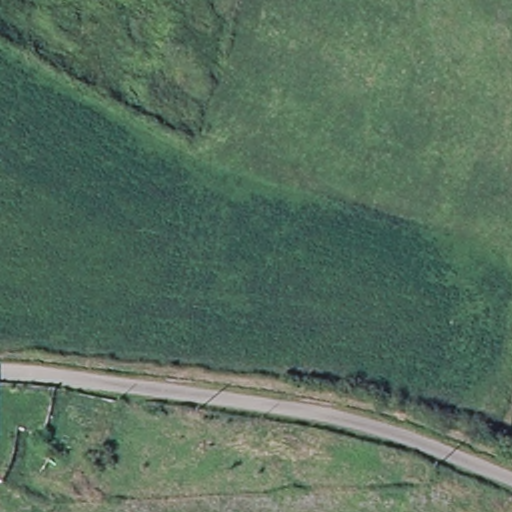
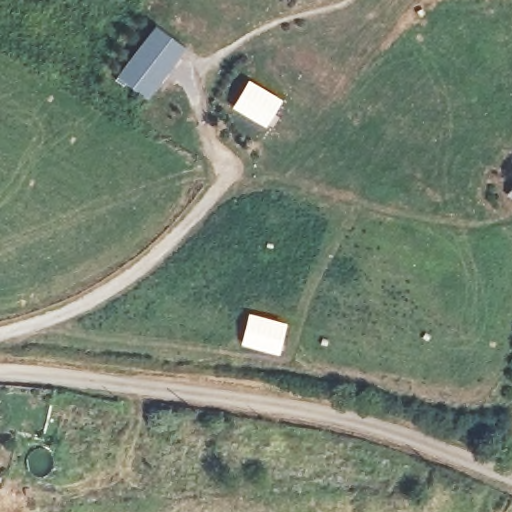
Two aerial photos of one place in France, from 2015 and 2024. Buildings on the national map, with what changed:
new [(149,98),(119,75),(158,23),(188,46),(149,98)]
new [(232,108),(250,78),(285,98),(265,128),(232,108)]
new [(242,343),(250,311),(288,320),(280,353),(242,343)]
unchanged [(18,476),(15,482),(9,497),(0,492),(0,475),(3,468),(18,476)]

